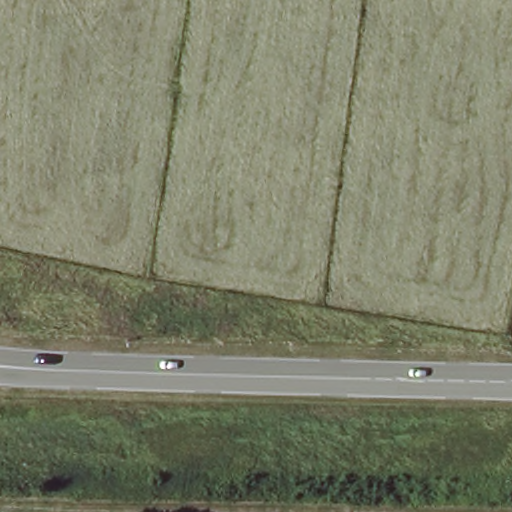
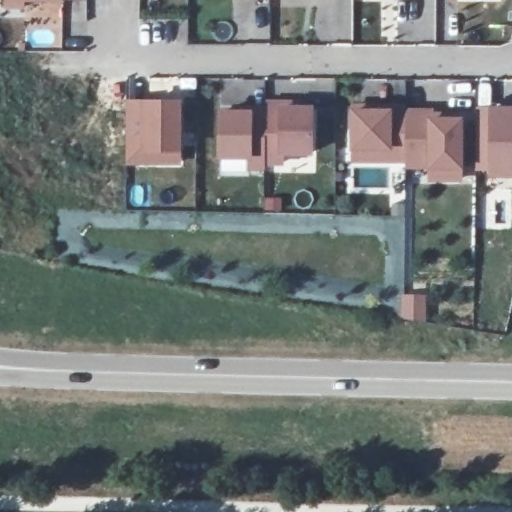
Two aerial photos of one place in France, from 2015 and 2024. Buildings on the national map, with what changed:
new [(86,0),(1,1),(2,0),(86,0)]
new [(397,105),(397,101),(414,101),(413,105),(436,106),(436,112),(481,113),(481,103),(512,103),(512,172),(440,172),(440,166),(409,166),(409,159),(361,159),(361,105),(397,105)]
new [(144,102),(178,102),(178,150),(146,149),(144,164),(125,164),(126,104),(144,102)]
new [(291,108),(291,102),(327,103),(327,152),(231,151),(230,107),(291,108)]

